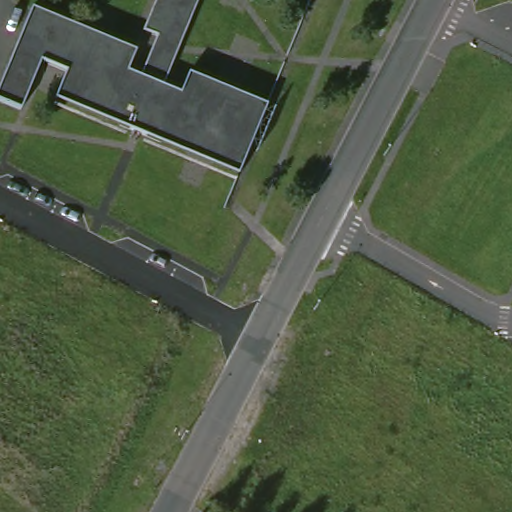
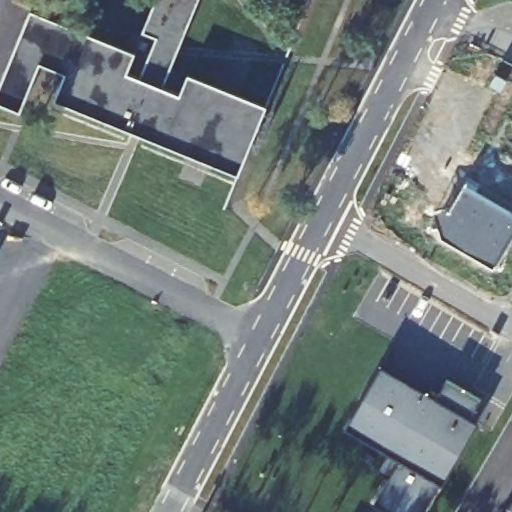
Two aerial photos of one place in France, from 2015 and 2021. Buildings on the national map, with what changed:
unchanged [(190,74),(269,107),(240,174),(58,97),(69,72),(44,61),(24,110),(0,99),(0,90),(34,9),(139,52),(130,72),(143,77),(160,37),(146,31),(159,0),(190,0),(155,82),(164,86),(183,93),(190,74)]
unchanged [(164,86),(155,82),(190,0),(200,0),(164,86)]
new [(469,421),(477,425),(444,486),(439,484),(424,512),(387,512),(374,505),(389,478),(379,470),(389,454),(345,430),(379,370),(437,401),(447,383),(479,401),(469,421)]
new [(508,512),(512,506),(512,512),(508,512)]

